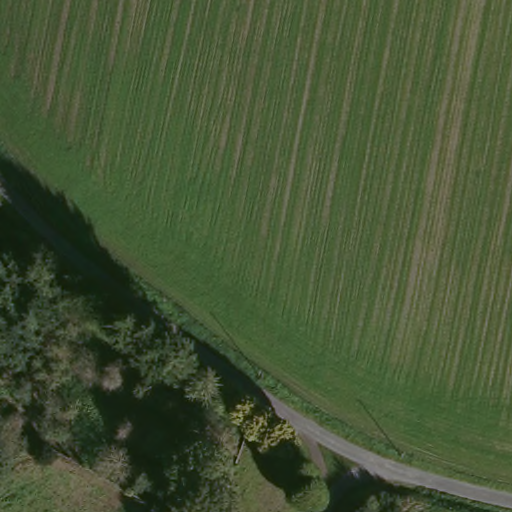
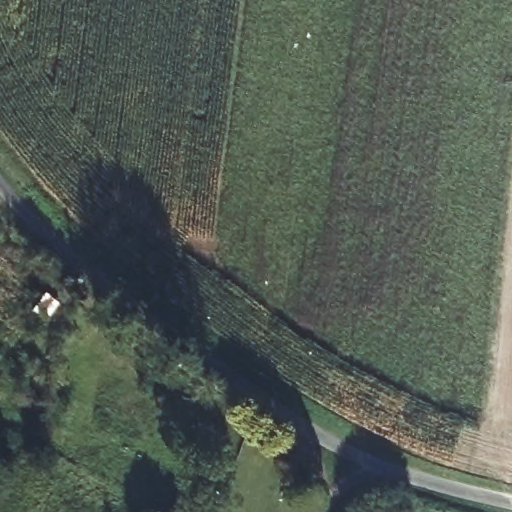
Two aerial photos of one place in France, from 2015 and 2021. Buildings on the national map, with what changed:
[]

